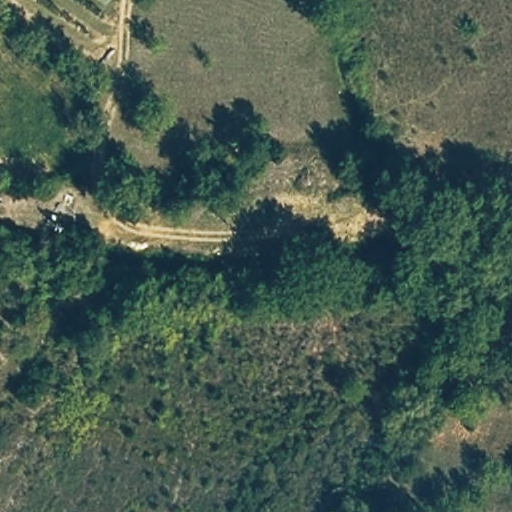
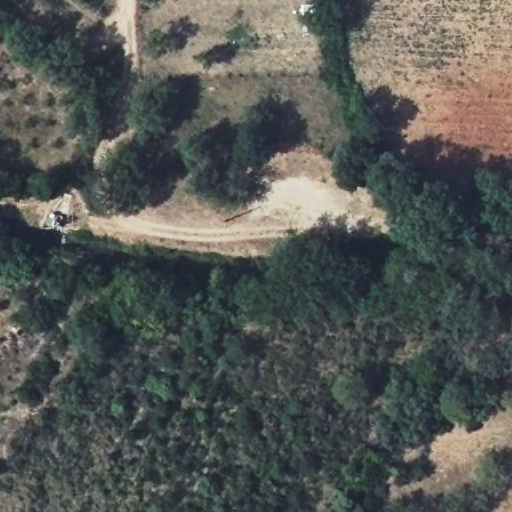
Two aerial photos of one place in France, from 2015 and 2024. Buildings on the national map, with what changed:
[]

